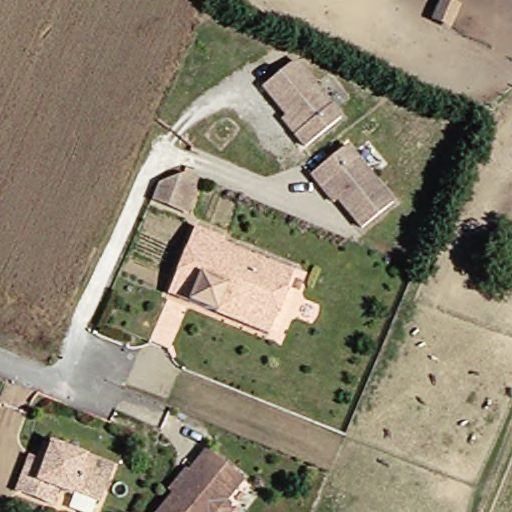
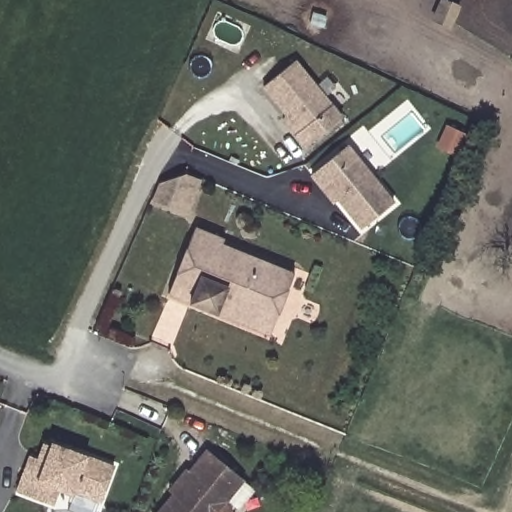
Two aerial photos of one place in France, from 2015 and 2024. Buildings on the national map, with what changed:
unchanged [(450,28),(433,20),(442,0),(446,0),(460,6),(450,28)]
unchanged [(288,116),(265,87),(296,62),(341,120),(306,148),(296,135),(283,119),(288,116)]
unchanged [(321,188),(312,175),(347,147),(393,205),(361,230),(338,200),(334,203),(321,188)]
unchanged [(183,216),(177,214),(147,201),(155,183),(180,174),(193,179),(199,181),(183,216)]
unchanged [(172,287),(194,233),(195,228),(215,236),(227,241),(225,246),(280,269),(260,320),(214,302),(210,311),(190,303),(169,294),(172,287)]
unchanged [(280,269),(295,274),(270,336),(210,311),(214,302),(260,320),(280,269)]
unchanged [(100,502),(74,493),(73,496),(59,490),(54,505),(16,492),(30,457),(37,460),(44,444),(50,447),(52,443),(75,451),(86,456),(114,466),(100,502)]
unchanged [(169,486),(174,480),(186,465),(189,467),(206,445),(245,476),(227,498),(230,503),(231,506),(232,509),(231,512),(155,512),(173,489),(169,486)]

